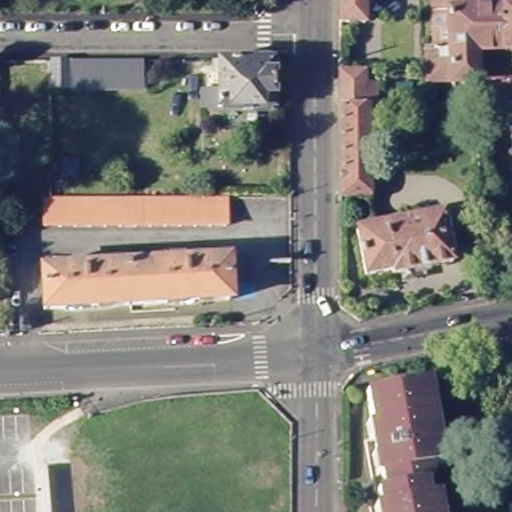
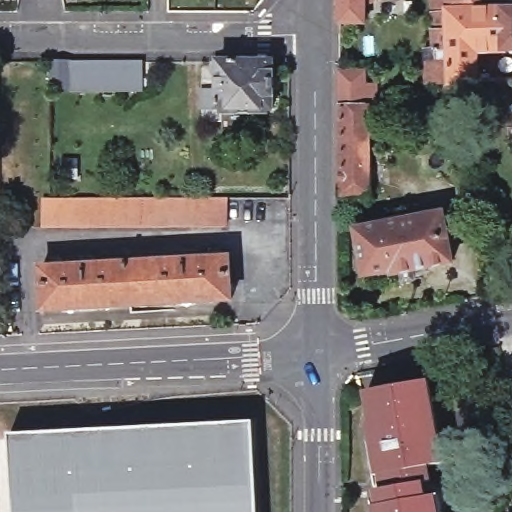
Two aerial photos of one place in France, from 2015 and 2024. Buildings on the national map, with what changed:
unchanged [(339,24),(339,0),(364,0),(364,24),(339,24)]
unchanged [(512,6),(512,50),(482,50),(481,82),(480,88),(478,93),(475,96),(469,97),(464,97),(459,94),(457,89),(455,84),(434,82),(430,82),(430,51),(436,51),(437,0),(486,0),(486,6),(512,6)]
unchanged [(201,132),(202,112),(202,93),(222,93),(222,71),(214,71),(214,60),(222,60),(222,57),(277,57),(277,113),(242,112),(241,132),(201,132)]
unchanged [(155,92),(51,92),(50,63),(154,62),(155,92)]
unchanged [(365,77),(365,90),(376,90),(376,111),(370,111),(339,110),(339,77),(365,77)]
unchanged [(339,137),(339,110),(370,111),(376,111),(384,111),(384,119),(365,120),(364,172),(369,172),(370,190),(365,190),(365,203),(340,202),(339,137)]
unchanged [(231,235),(52,236),(52,208),(57,207),(230,207),(231,235)]
unchanged [(451,263),(393,276),(391,271),(366,276),(356,232),(442,214),(451,263)]
unchanged [(228,258),(230,299),(44,309),(41,268),(228,258)]
unchanged [(380,511),(378,497),(387,496),(384,481),(376,483),(372,460),(380,458),(377,446),(369,447),(367,433),(375,431),(368,398),(423,388),(429,387),(442,449),(444,449),(448,471),(440,472),(429,474),(430,486),(422,487),(425,501),(432,499),(440,497),(443,512),(376,512),(380,511)]
new [(252,423),(257,512),(12,512),(8,436),(252,423)]

